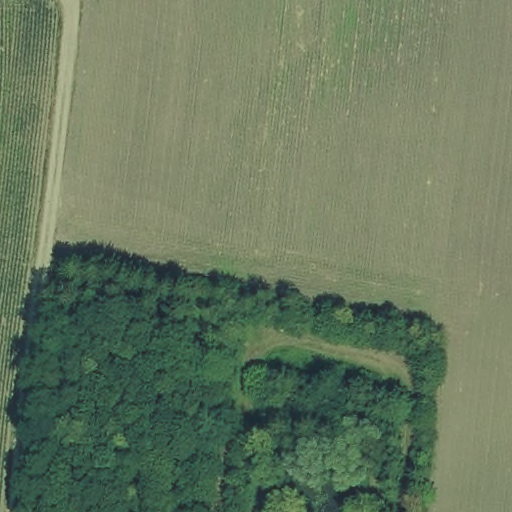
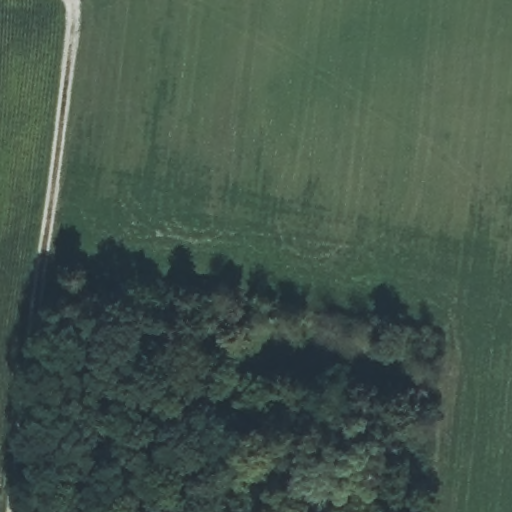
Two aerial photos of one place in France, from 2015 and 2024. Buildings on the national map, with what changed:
unchanged [(217,327),(181,323),(186,296),(219,302),(217,327)]
unchanged [(159,512),(161,500),(187,501),(187,512),(159,512)]

